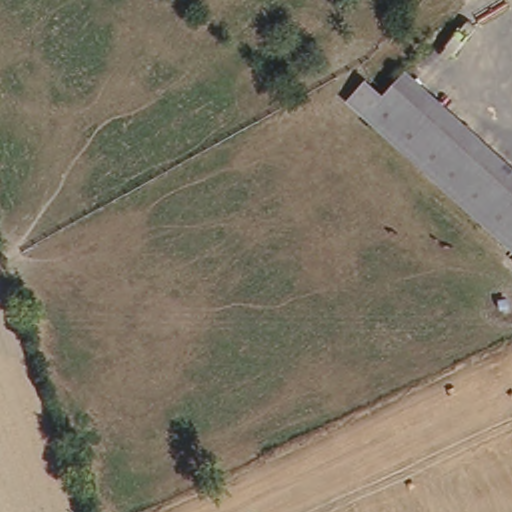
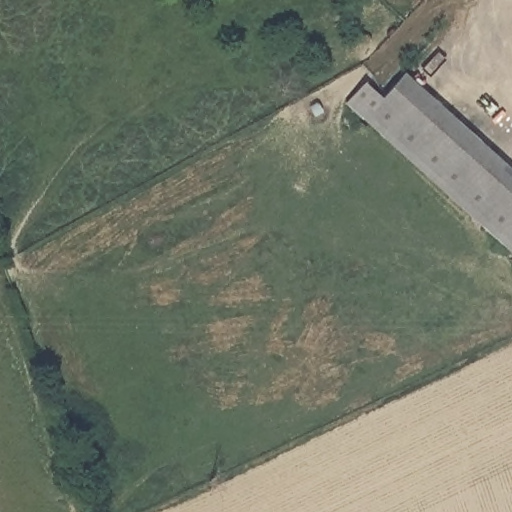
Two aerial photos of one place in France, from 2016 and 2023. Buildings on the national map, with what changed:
unchanged [(512,251),(348,102),(364,84),(380,98),(409,67),(512,164),(512,251)]

